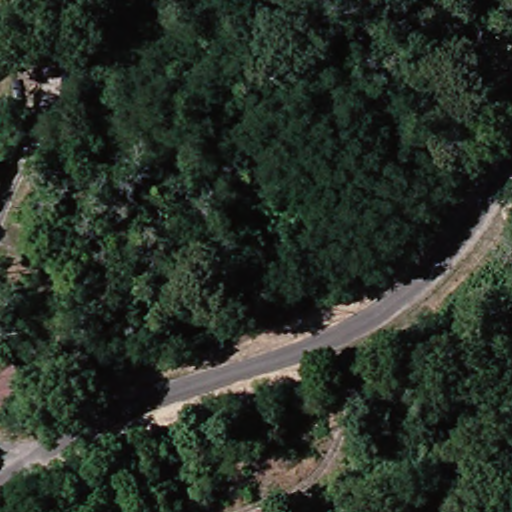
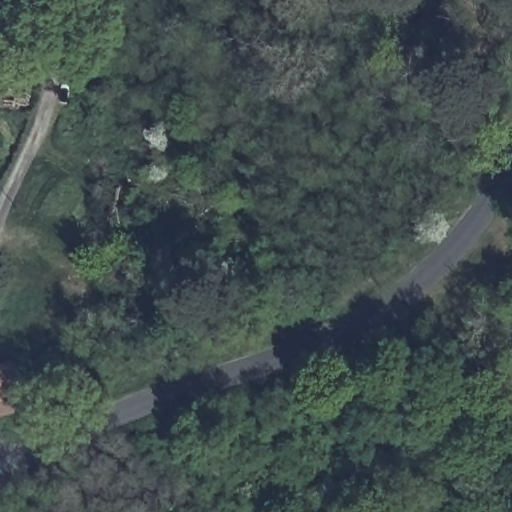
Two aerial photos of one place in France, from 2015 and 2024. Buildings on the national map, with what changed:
unchanged [(0,165),(0,154),(3,155),(0,165)]
unchanged [(0,365),(19,362),(24,395),(26,409),(0,413),(0,365)]

